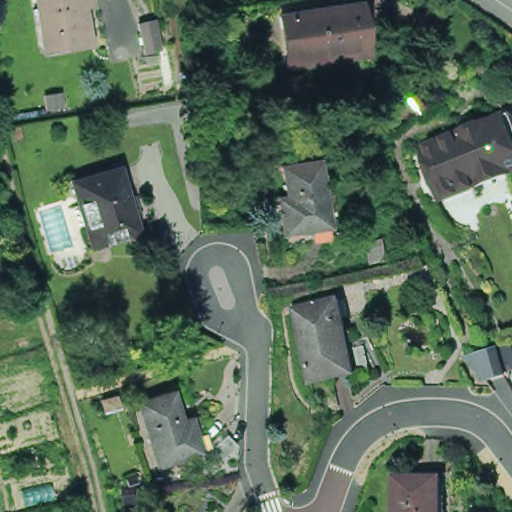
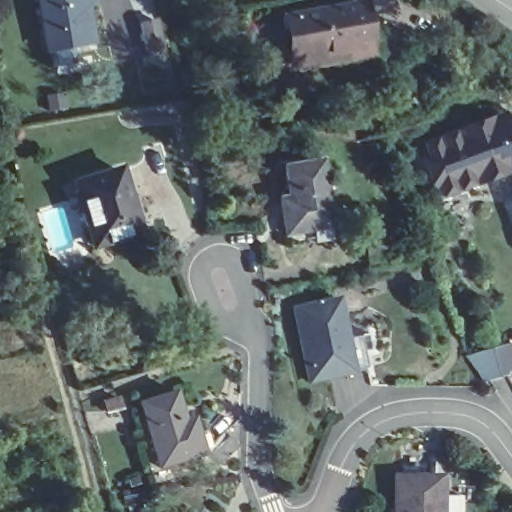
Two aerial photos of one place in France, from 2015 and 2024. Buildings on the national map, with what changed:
unchanged [(92,47),(50,55),(38,0),(84,0),(92,47)]
unchanged [(372,8),(383,62),(360,67),(357,57),(315,65),(307,21),(372,8)]
unchanged [(152,51),(148,22),(160,20),(165,49),(152,51)]
unchanged [(315,65),(357,57),(360,67),(302,78),(293,23),(307,21),(315,65)]
unchanged [(475,119),(504,108),(511,106),(512,108),(512,165),(511,166),(428,196),(409,144),(475,119)]
unchanged [(294,197),(290,169),(325,164),(334,229),(289,235),(285,212),(284,199),(294,197)]
unchanged [(98,236),(83,185),(128,171),(148,232),(122,241),(102,248),(98,236)]
unchanged [(374,267),(372,245),(390,245),(390,265),(374,267)]
unchanged [(357,376),(314,385),(300,311),(347,300),(356,340),(363,375),(357,376)]
unchanged [(483,352),(510,345),(512,351),(512,360),(487,366),(483,352)]
unchanged [(221,442),(210,450),(212,455),(167,471),(145,405),(185,392),(193,422),(201,421),(205,433),(215,426),(221,442)]
unchanged [(450,485),(449,512),(402,512),(403,485),(450,485)]

